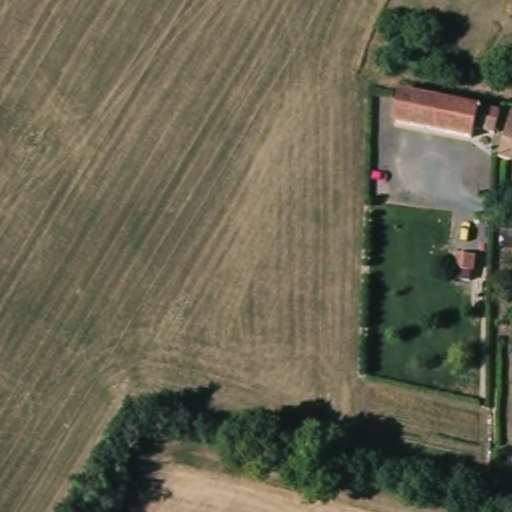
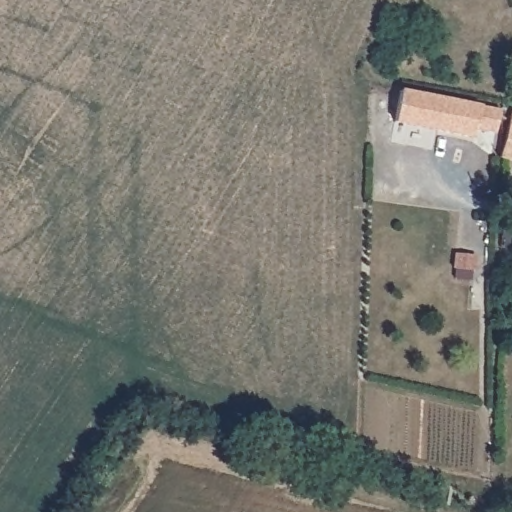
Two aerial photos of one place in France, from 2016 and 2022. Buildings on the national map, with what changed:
unchanged [(497,137),(476,133),(474,142),(397,129),(403,96),(482,111),(502,116),(497,137)]
unchanged [(512,132),(512,167),(502,165),(512,132)]
unchanged [(477,273),(457,273),(457,258),(477,258),(477,273)]

